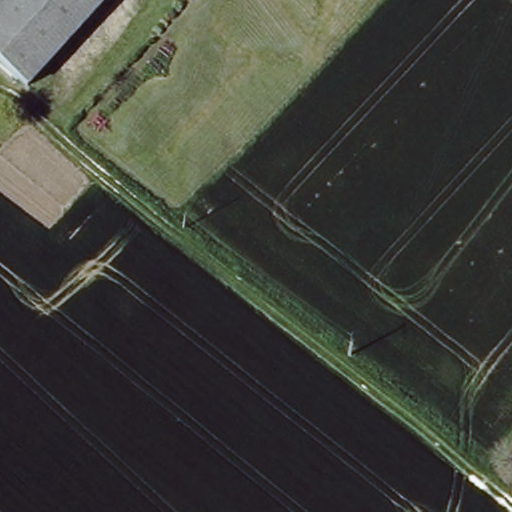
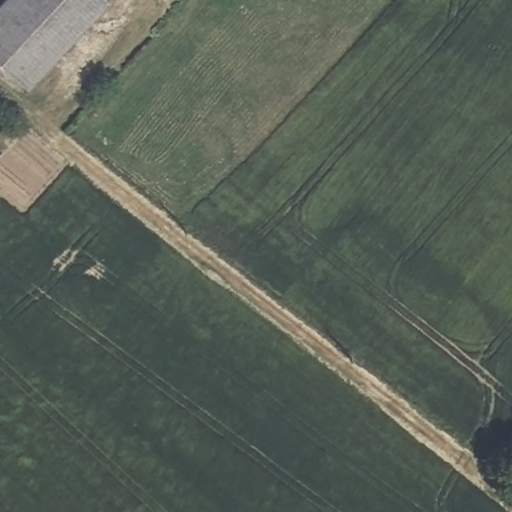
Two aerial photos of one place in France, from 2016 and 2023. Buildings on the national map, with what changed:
unchanged [(32,85),(28,90),(0,67),(0,9),(8,0),(111,0),(32,85)]

